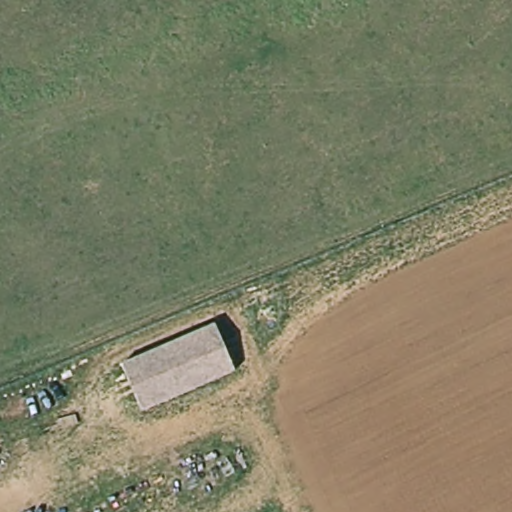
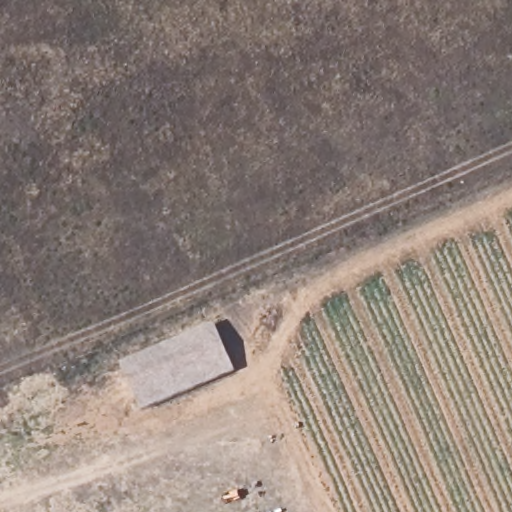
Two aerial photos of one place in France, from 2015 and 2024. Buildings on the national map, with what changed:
unchanged [(235,372),(142,412),(122,365),(216,326),(235,372)]

